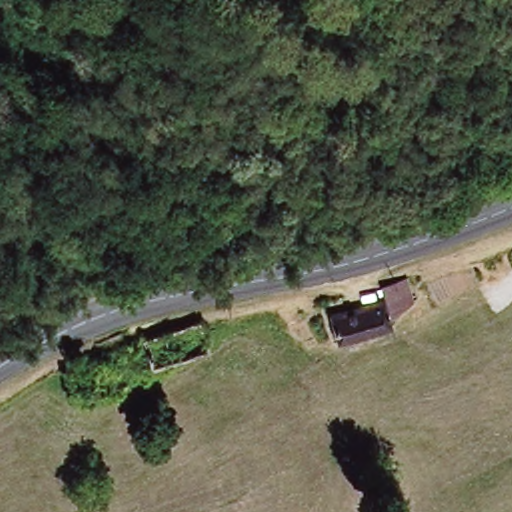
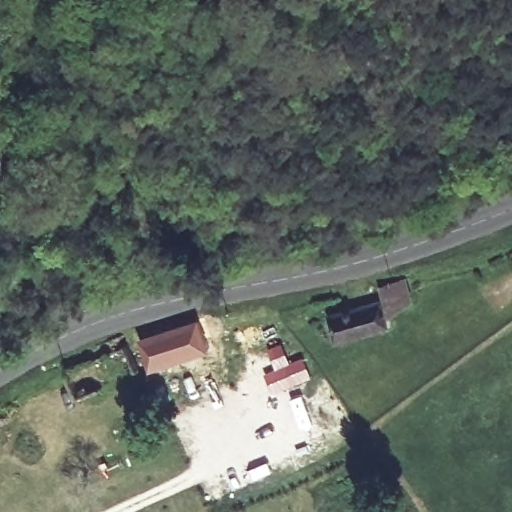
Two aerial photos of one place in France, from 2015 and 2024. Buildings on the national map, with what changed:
unchanged [(409,304),(413,323),(366,334),(334,342),(324,303),(346,297),(384,286),(381,275),(402,270),(409,304)]
new [(194,320),(202,346),(196,348),(198,354),(156,369),(146,336),(194,320)]
demolished [(191,324),(203,357),(148,376),(136,345),(191,324)]

